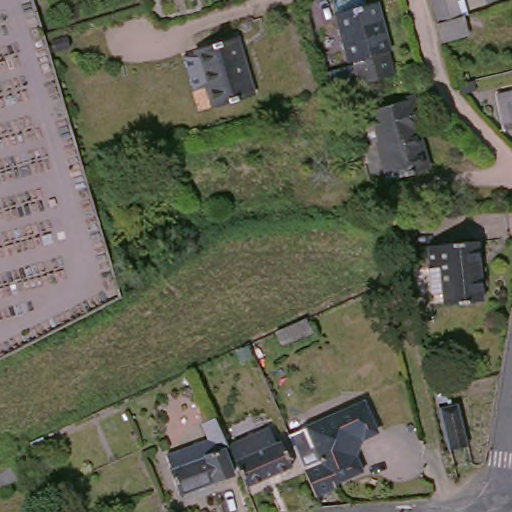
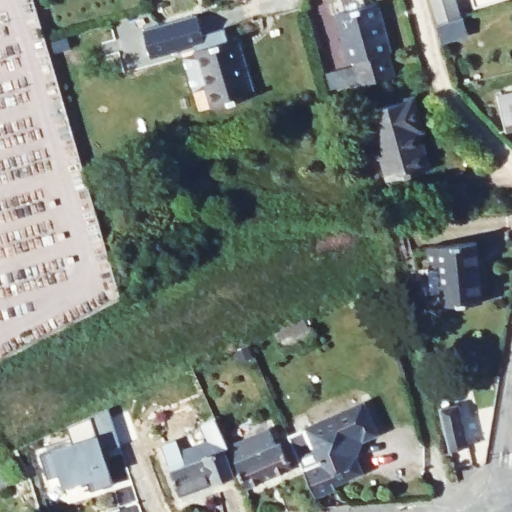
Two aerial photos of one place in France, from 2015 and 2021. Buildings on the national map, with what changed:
unchanged [(436,32),(438,31),(430,0),(452,0),(460,25),(464,24),(468,42),(441,50),(437,34),(436,32)]
unchanged [(349,69),(344,70),(332,21),(373,10),(386,58),(383,59),(389,84),(366,90),(356,92),(349,69)]
unchanged [(234,41),(252,98),(211,109),(206,90),(193,94),(181,61),(196,57),(195,52),(234,41)]
unchanged [(512,96),(512,132),(506,133),(498,99),(512,96)]
unchanged [(414,102),(423,132),(418,134),(428,171),(389,183),(383,161),(364,166),(351,118),(414,102)]
unchanged [(423,276),(424,275),(423,254),(469,250),(476,308),(439,311),(438,301),(426,302),(423,276)]
unchanged [(311,337),(281,348),(276,335),(299,324),(305,321),(311,337)]
unchanged [(448,458),(446,452),(436,416),(456,410),(465,447),(466,453),(448,458)]
unchanged [(298,465),(289,443),(363,411),(376,439),(359,448),(353,462),(360,477),(334,490),(334,494),(314,504),(298,465)]
new [(71,441),(66,424),(90,414),(113,481),(90,488),(86,476),(64,484),(61,472),(47,477),(39,452),(71,441)]
unchanged [(226,452),(228,455),(223,457),(232,483),(178,502),(169,477),(165,464),(208,449),(201,431),(214,425),(226,452)]
unchanged [(236,473),(234,469),(228,455),(226,452),(267,433),(274,450),(279,448),(291,474),(245,494),(236,473)]
unchanged [(41,439),(45,450),(26,457),(23,447),(41,439)]
unchanged [(11,482),(0,487),(0,467),(3,466),(11,482)]

